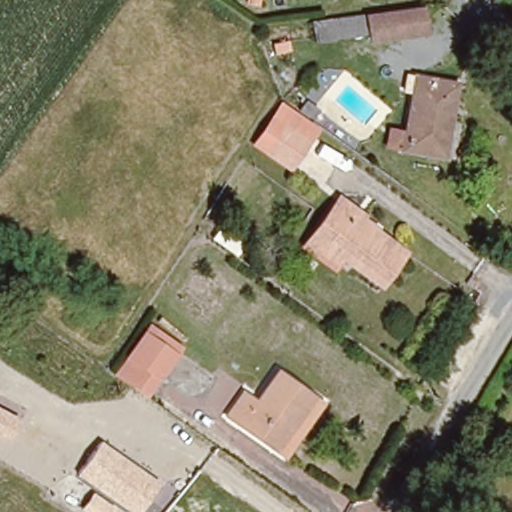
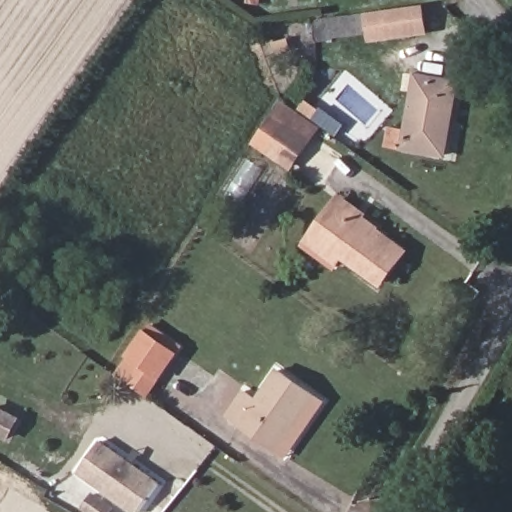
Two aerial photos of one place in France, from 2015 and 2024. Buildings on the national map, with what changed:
unchanged [(373,43),(372,35),(330,35),(330,15),(423,6),(430,34),(373,43)]
unchanged [(389,131),(406,134),(413,77),(460,82),(451,157),(404,151),(387,149),(389,131)]
unchanged [(253,142),(275,112),(284,99),(316,124),(307,137),(286,168),(253,142)]
unchanged [(338,198),(408,256),(385,286),(344,252),(337,261),(310,237),(316,229),(338,198)]
unchanged [(115,371),(149,330),(155,323),(184,346),(178,353),(146,396),(115,371)]
unchanged [(243,390),(258,401),(281,371),(324,407),(282,460),(225,415),(243,390)]
unchanged [(0,435),(0,409),(19,420),(8,440),(0,435)]
unchanged [(135,512),(78,472),(99,440),(160,482),(141,512),(135,512)]

